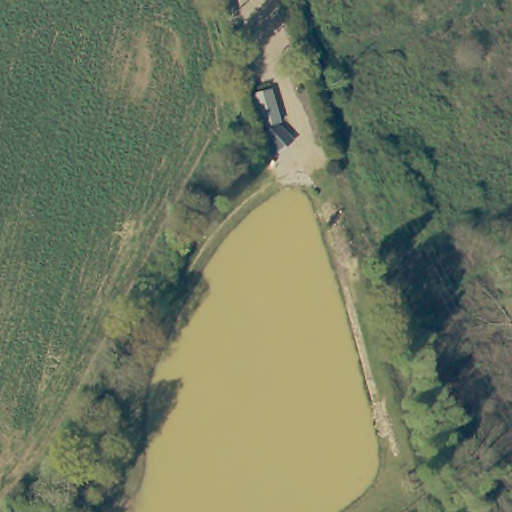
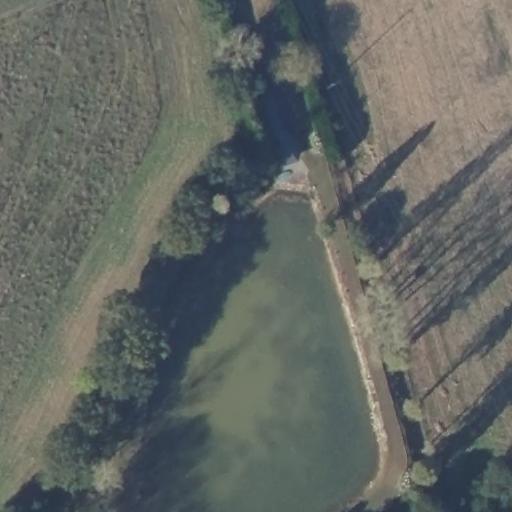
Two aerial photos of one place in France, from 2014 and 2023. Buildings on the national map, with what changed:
unchanged [(281,150),(265,129),(255,94),(272,90),(283,124),(295,138),(281,150)]

